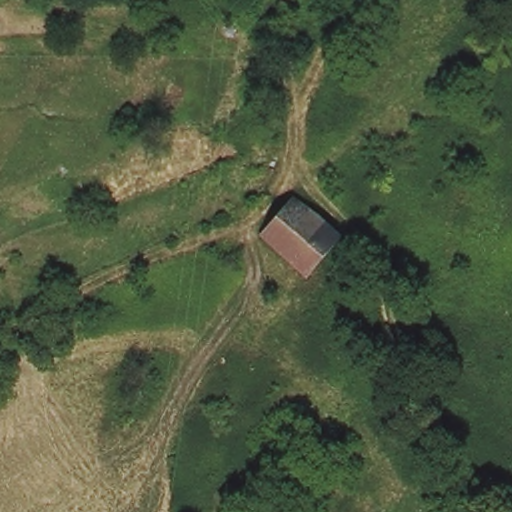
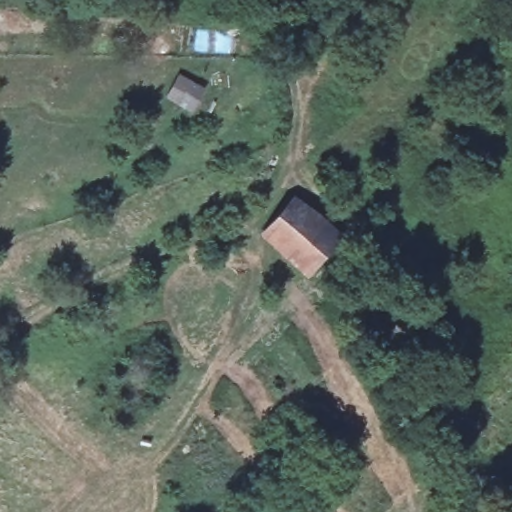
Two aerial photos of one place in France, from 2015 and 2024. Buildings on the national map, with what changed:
unchanged [(309,273),(296,258),(284,245),(258,216),(292,184),(321,208),(334,225),(345,241),(309,273)]

